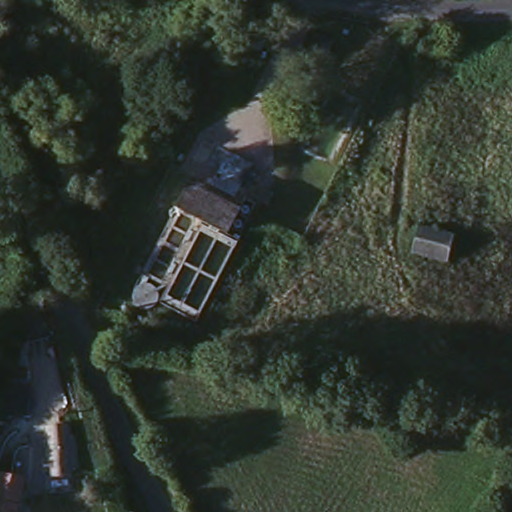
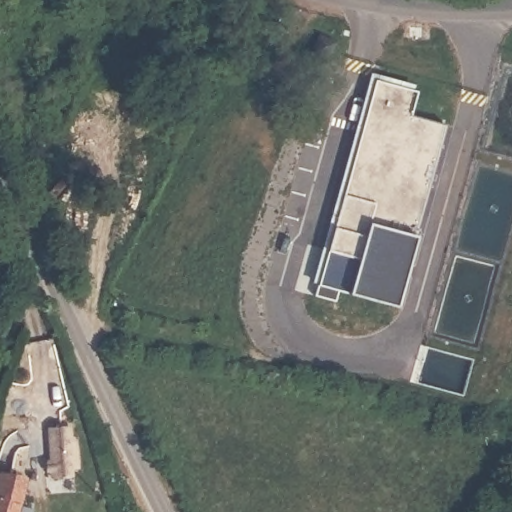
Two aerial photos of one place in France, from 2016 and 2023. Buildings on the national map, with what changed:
new [(372,74),(418,86),(411,116),(442,124),(394,314),(313,289),(372,74)]
demolished [(204,214),(175,267),(169,264),(165,272),(154,267),(150,272),(157,277),(159,281),(160,286),(159,290),(154,294),(149,297),(144,297),(139,293),(135,288),(135,280),(175,198),(180,200),(192,178),(215,189),(217,186),(231,193),(229,196),(240,201),(228,225),(204,214)]
new [(14,382),(35,388),(33,419),(6,412),(14,382)]
unchanged [(70,426),(75,477),(51,479),(51,472),(45,472),(44,463),(49,462),(48,429),(70,426)]
unchanged [(0,512),(0,474),(29,482),(21,512),(0,512)]

